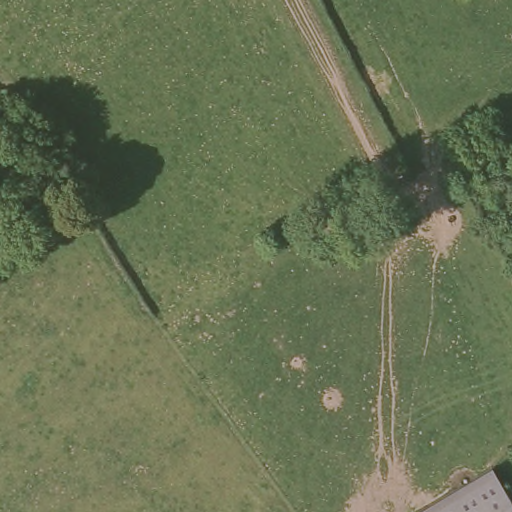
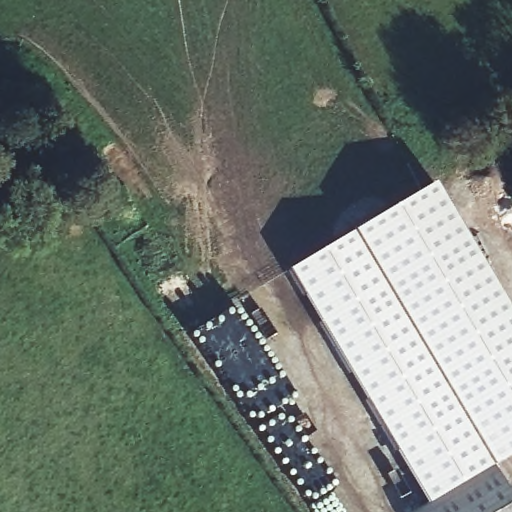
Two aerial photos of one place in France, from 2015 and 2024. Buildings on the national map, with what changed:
new [(352,232),(433,185),(512,319),(512,452),(489,465),(426,504),(285,272),(352,232)]
unchanged [(512,503),(512,512),(414,512),(489,465),(512,503)]

